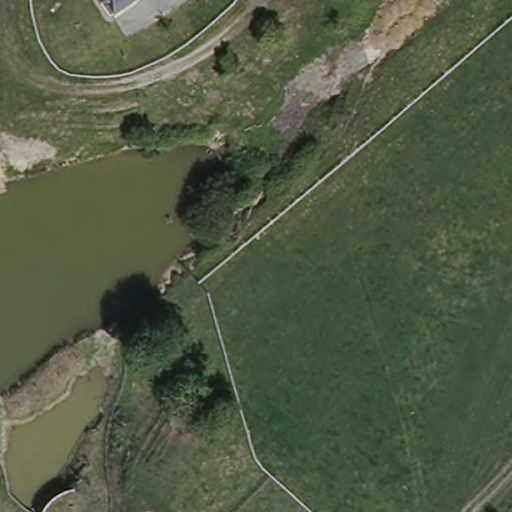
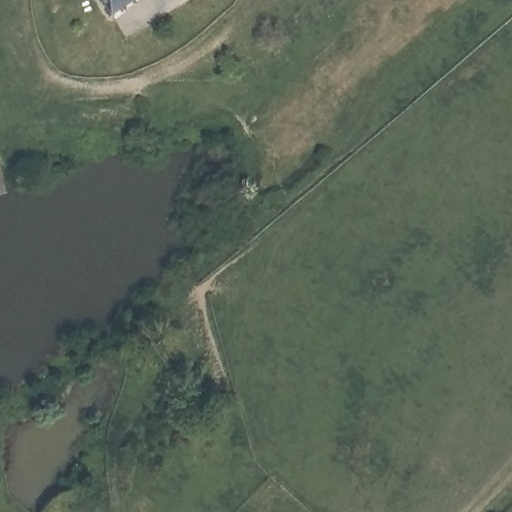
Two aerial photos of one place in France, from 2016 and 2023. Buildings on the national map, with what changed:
unchanged [(20,0),(34,0),(32,6),(20,0)]
unchanged [(105,0),(141,0),(117,18),(105,0)]

